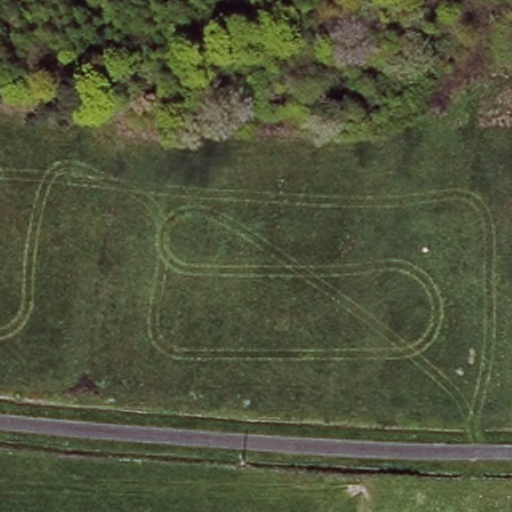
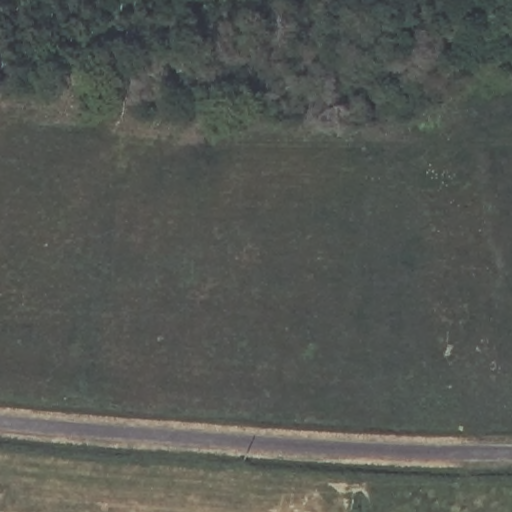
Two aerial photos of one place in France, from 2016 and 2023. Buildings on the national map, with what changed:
[]

